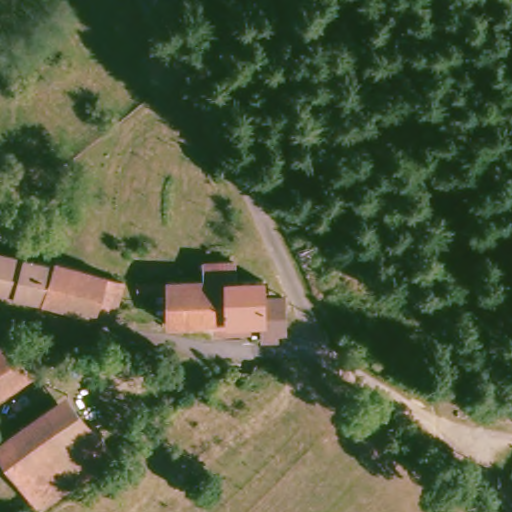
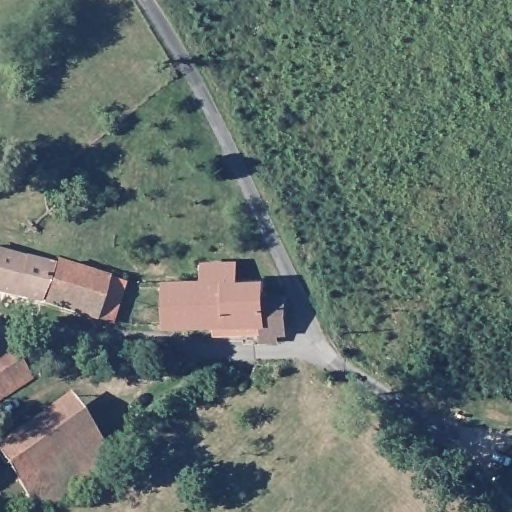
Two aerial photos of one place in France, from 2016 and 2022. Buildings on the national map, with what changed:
unchanged [(37,301),(0,293),(0,250),(45,261),(37,301)]
unchanged [(124,268),(118,313),(42,299),(49,255),(71,257),(124,268)]
unchanged [(274,338),(260,338),(259,330),(210,331),(210,325),(160,326),(157,282),(190,280),(189,262),(225,262),(226,280),(255,279),(256,299),(270,299),(274,338)]
unchanged [(0,391),(0,347),(8,344),(25,380),(0,391)]
unchanged [(49,512),(43,512),(0,457),(0,443),(51,400),(69,392),(110,459),(88,472),(49,512)]

